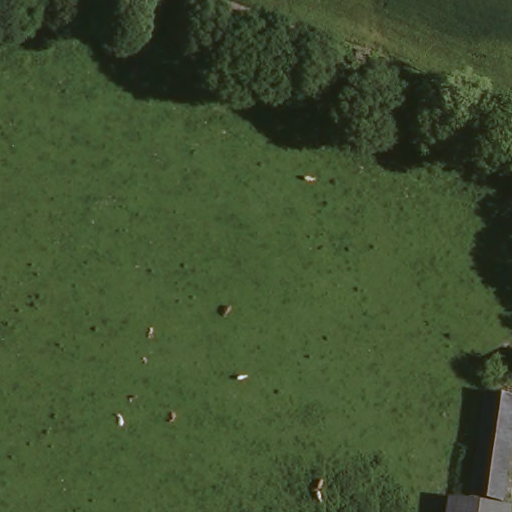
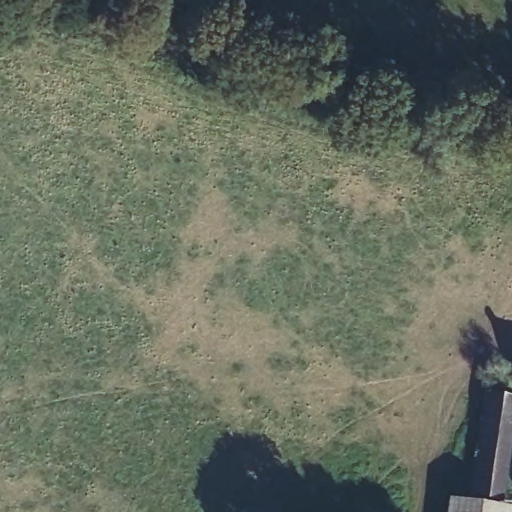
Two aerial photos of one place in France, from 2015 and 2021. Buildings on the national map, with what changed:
unchanged [(509,391),(511,383),(512,383),(512,391),(509,391)]
unchanged [(512,407),(512,477),(508,512),(476,508),(490,404),(512,407)]
unchanged [(467,512),(446,512),(447,510),(467,512)]

